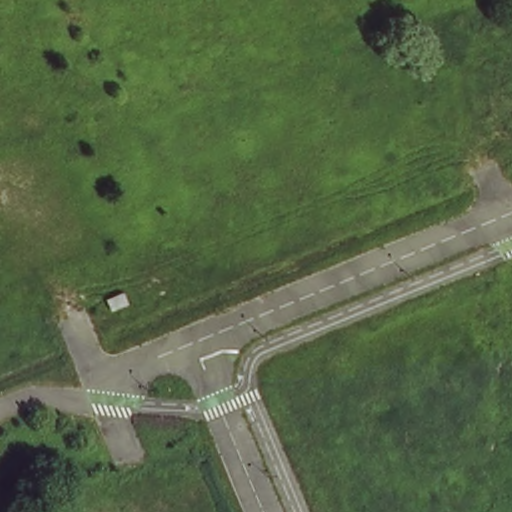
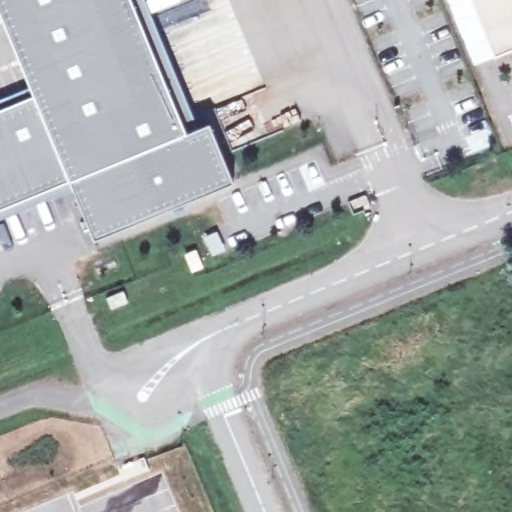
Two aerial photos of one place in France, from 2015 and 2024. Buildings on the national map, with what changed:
new [(209,124),(233,183),(94,239),(70,179),(0,208),(0,108),(35,94),(0,9),(0,0),(130,0),(185,133),(198,128),(209,124)]
new [(185,133),(130,0),(145,0),(198,128),(185,133)]
new [(494,56),(471,0),(512,0),(512,49),(494,56)]
new [(217,232),(225,250),(215,255),(207,236),(217,232)]
new [(107,299),(123,291),(128,302),(111,309),(107,299)]

